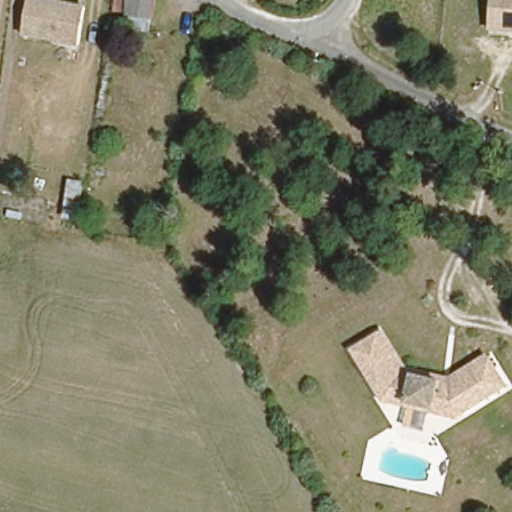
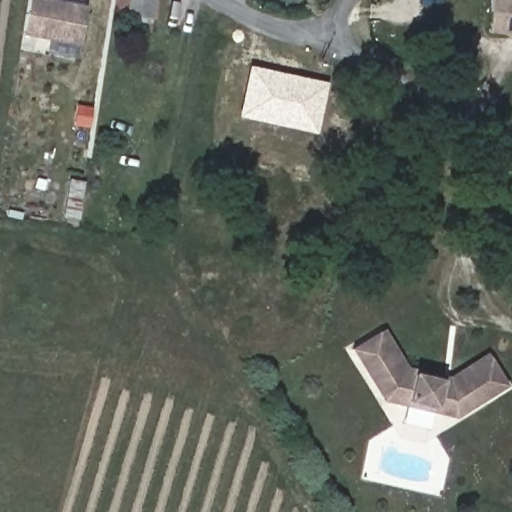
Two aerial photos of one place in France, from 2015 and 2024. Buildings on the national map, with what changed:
unchanged [(86,6),(80,44),(22,34),(28,0),(49,0),(86,6)]
unchanged [(156,17),(152,17),(151,32),(132,29),(133,13),(117,11),(118,0),(157,0),(156,17)]
unchanged [(491,26),(493,0),(512,0),(512,29),(491,26)]
new [(239,118),(249,69),(327,85),(317,135),(239,118)]
unchanged [(377,332),(405,371),(451,378),(485,354),(506,382),(457,416),(383,402),(347,353),(377,332)]

